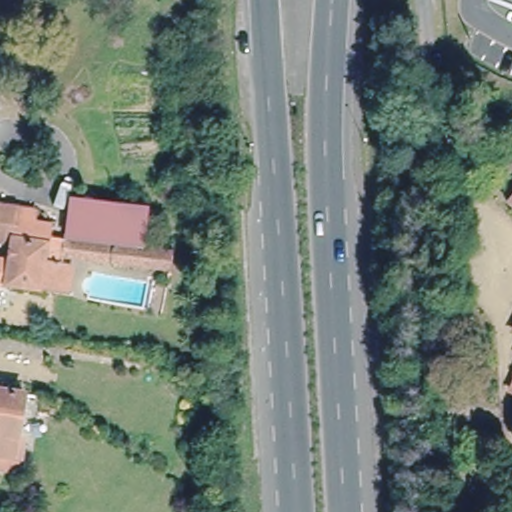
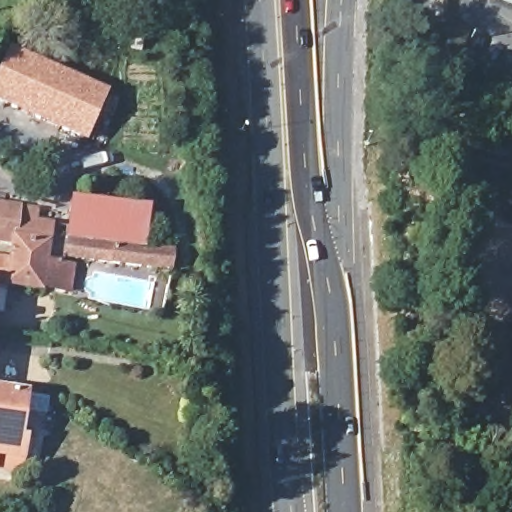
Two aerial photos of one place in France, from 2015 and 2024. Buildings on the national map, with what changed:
unchanged [(494,0),(512,0),(512,9),(493,2),(494,0)]
new [(86,141),(0,104),(0,67),(8,47),(105,91),(86,141)]
unchanged [(73,193),(149,203),(146,243),(68,234),(73,193)]
unchanged [(512,204),(512,212),(508,209),(512,204)]
unchanged [(38,217),(34,259),(32,283),(0,280),(0,211),(38,217)]
unchanged [(68,234),(146,243),(165,247),(162,264),(52,249),(55,232),(68,234)]
new [(34,259),(75,266),(71,291),(32,283),(34,259)]
unchanged [(22,444),(30,445),(28,462),(0,457),(0,393),(26,397),(22,444)]

